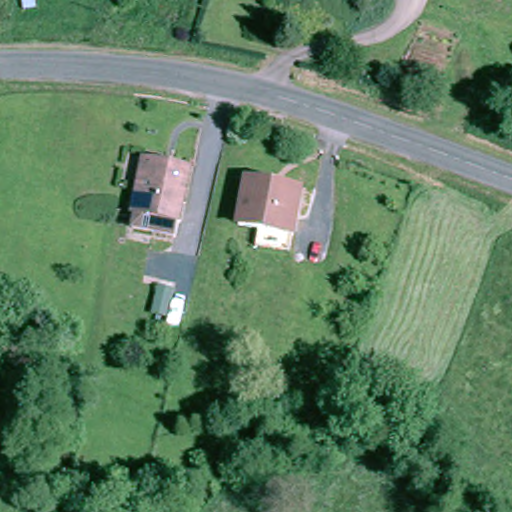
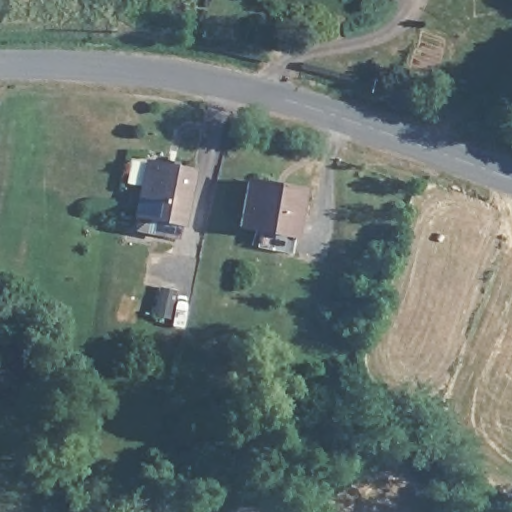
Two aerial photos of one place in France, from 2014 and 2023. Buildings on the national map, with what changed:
unchanged [(135,217),(138,202),(136,202),(147,149),(191,157),(182,210),(179,209),(176,224),(135,217)]
unchanged [(262,247),(265,229),(247,226),(254,182),(306,191),(302,223),(300,236),(297,253),(293,253),(262,247)]

